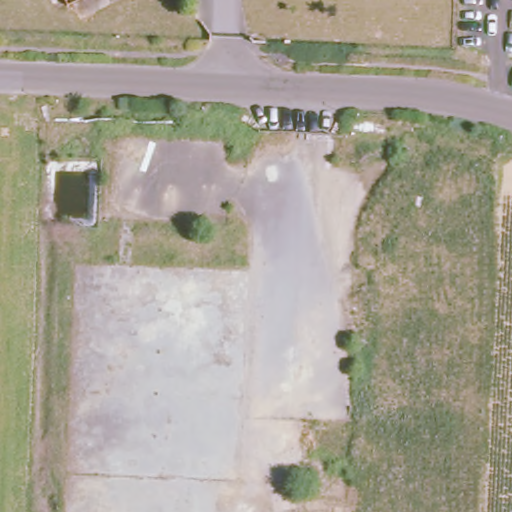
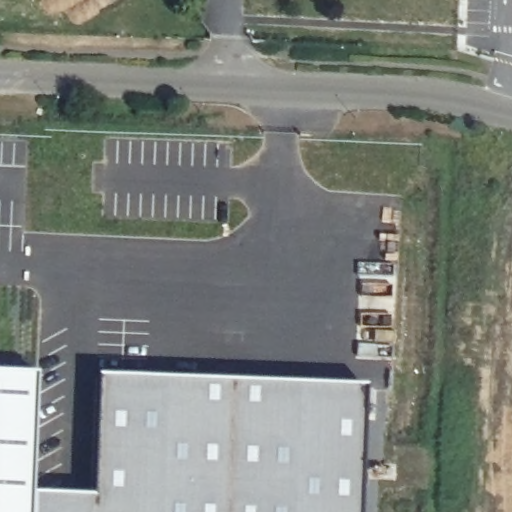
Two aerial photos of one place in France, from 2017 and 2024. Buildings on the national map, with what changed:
new [(0,512),(0,377),(38,379),(33,512),(0,512)]
new [(92,500),(97,380),(366,391),(361,512),(32,512),(33,498),(92,500)]

